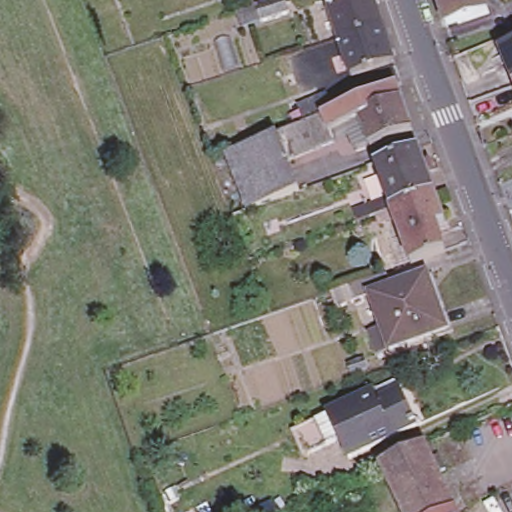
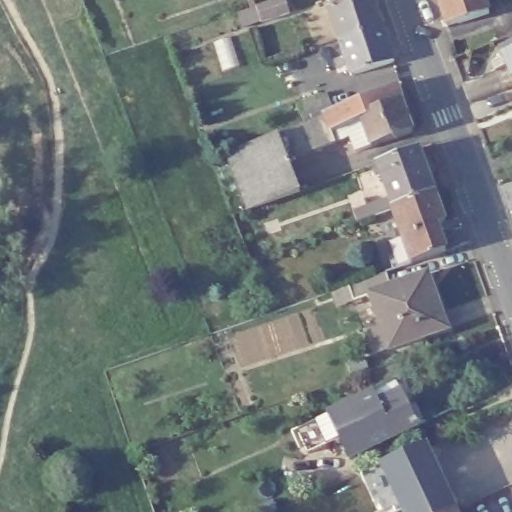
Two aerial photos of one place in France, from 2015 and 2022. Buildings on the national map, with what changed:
unchanged [(287,0),(292,13),(265,23),(259,8),(284,0),(287,0)]
unchanged [(375,0),(385,28),(342,42),(331,8),(328,0),(375,0)]
unchanged [(438,0),(463,0),(440,7),(438,0)]
unchanged [(440,7),(463,0),(483,0),(490,19),(449,32),(440,7)]
unchanged [(385,28),(397,63),(354,78),(342,42),(385,28)]
unchanged [(300,112),(329,101),(335,118),(397,93),(402,107),(362,122),(362,129),(345,131),(349,140),(334,144),(335,148),(290,165),(279,140),(306,129),(300,112)]
unchanged [(414,139),(371,154),(362,129),(362,122),(402,107),(414,139)]
unchanged [(274,142),(279,140),(290,165),(302,197),(295,200),(244,218),(242,212),(247,211),(227,160),(274,142)]
unchanged [(425,163),(437,196),(396,211),(384,177),(425,163)]
unchanged [(502,187),(512,182),(512,195),(505,198),(502,187)]
unchanged [(394,212),(396,211),(437,196),(447,223),(437,226),(447,254),(413,266),(394,212)]
unchanged [(461,334),(405,355),(386,303),(354,315),(348,299),(402,280),(407,293),(443,281),(461,334)]
unchanged [(324,407),(360,390),(363,397),(395,382),(410,416),(344,447),(324,407)]
unchanged [(410,416),(419,434),(352,463),(344,447),(410,416)]
unchanged [(425,444),(457,512),(405,512),(382,464),(425,444)]

